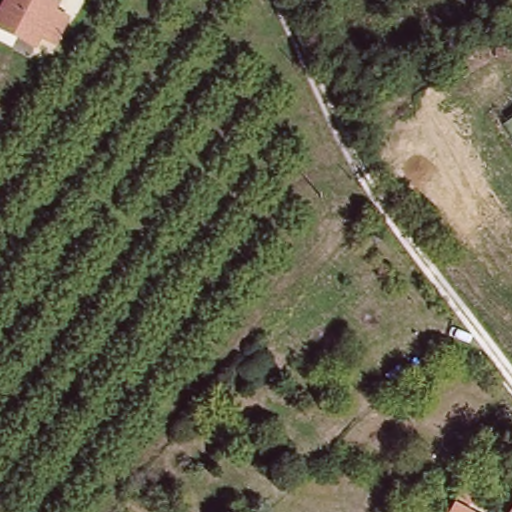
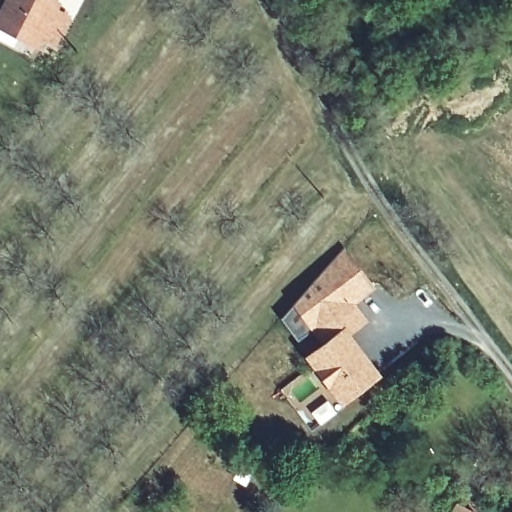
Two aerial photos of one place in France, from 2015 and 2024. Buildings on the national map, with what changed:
unchanged [(55,38),(41,31),(36,40),(0,21),(0,12),(6,0),(57,0),(55,8),(67,14),(55,38)]
demolished [(495,109),(512,97),(512,132),(495,109)]
new [(312,330),(297,340),(280,318),(346,246),(377,289),(314,334),(312,330)]
new [(370,321),(350,334),(382,375),(341,406),(304,357),(321,342),(314,334),(357,304),(370,321)]
unchanged [(466,510),(468,512),(447,512),(457,493),(470,501),(466,510)]

